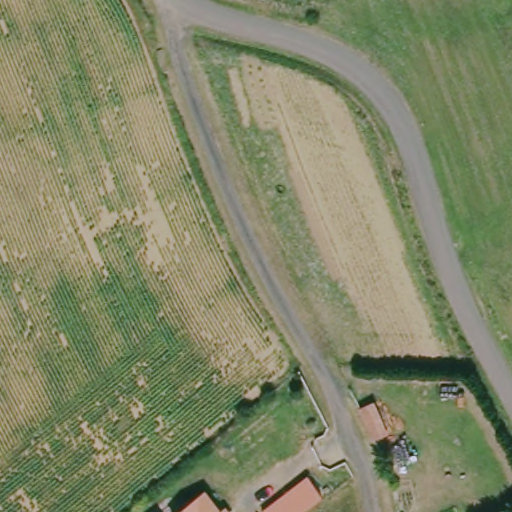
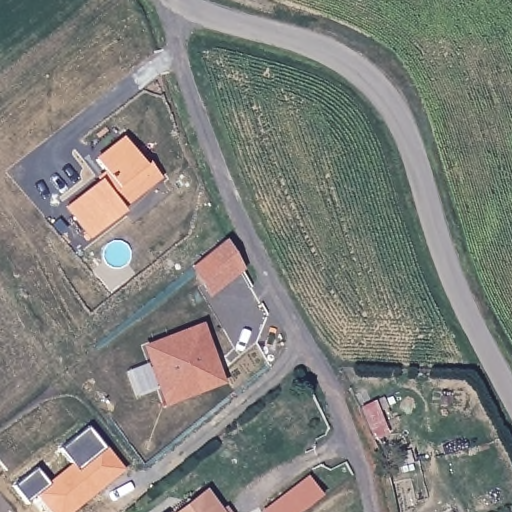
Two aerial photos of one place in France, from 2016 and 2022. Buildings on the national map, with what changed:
new [(65,207),(100,180),(96,177),(105,171),(95,159),(122,137),(145,166),(148,163),(162,177),(122,209),(125,211),(90,240),(65,207)]
new [(225,242),(240,270),(210,295),(195,266),(225,242)]
new [(225,385),(165,407),(141,346),(202,322),(225,385)]
unchanged [(363,405),(378,396),(394,425),(378,436),(363,405)]
unchanged [(324,500),(307,512),(277,512),(275,509),(310,481),(324,500)]
unchanged [(219,512),(187,512),(187,507),(195,510),(209,498),(219,512)]

